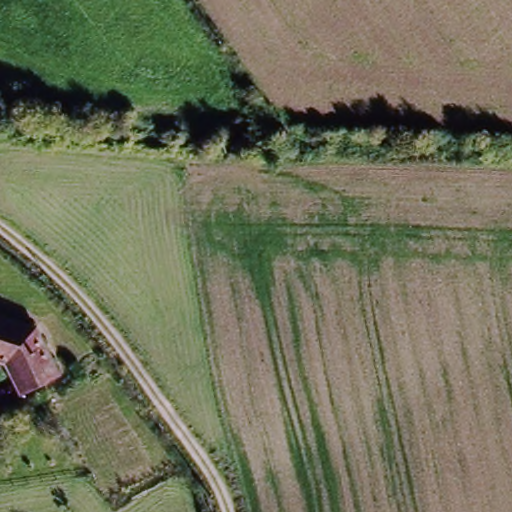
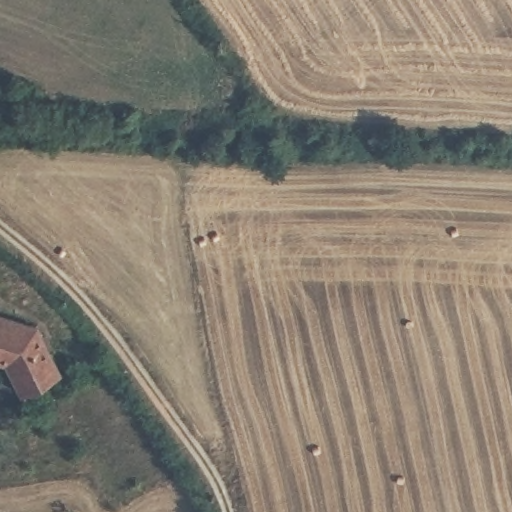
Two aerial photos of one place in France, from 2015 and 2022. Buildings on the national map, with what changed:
unchanged [(34,326),(57,366),(22,387),(1,356),(0,355),(0,312),(34,326)]

